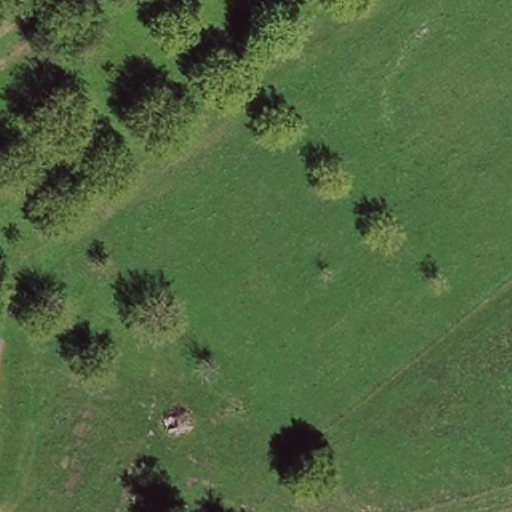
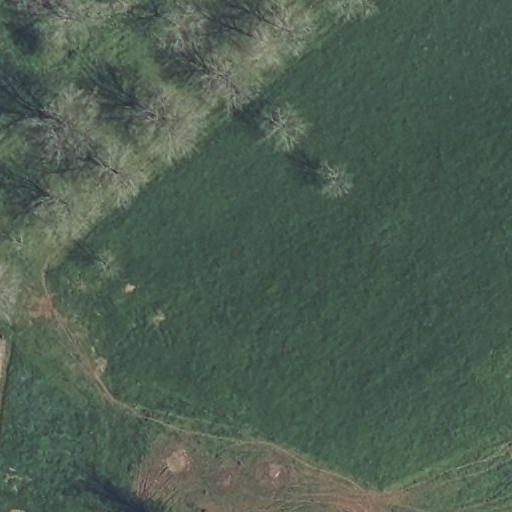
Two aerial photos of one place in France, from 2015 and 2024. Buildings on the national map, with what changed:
unchanged [(0,376),(0,350),(4,351),(0,376)]

